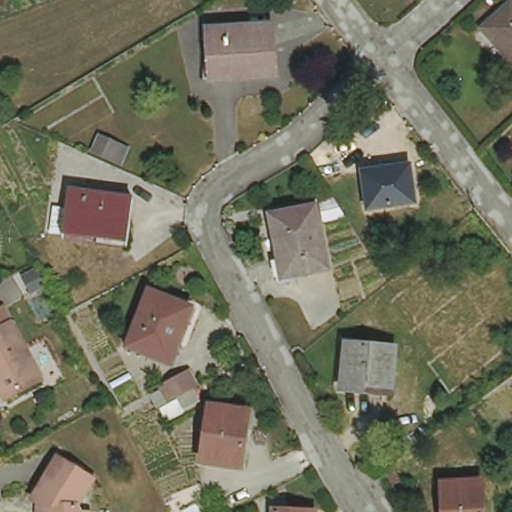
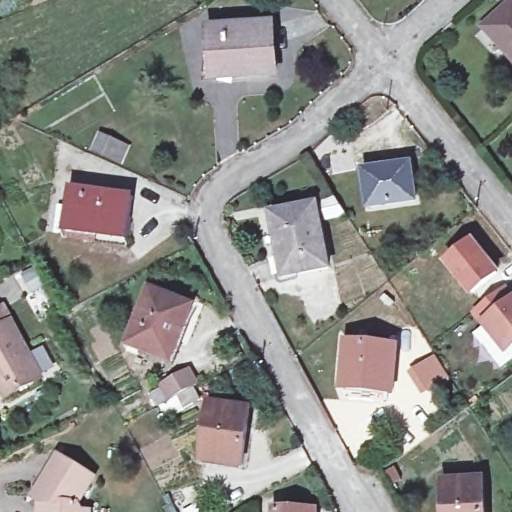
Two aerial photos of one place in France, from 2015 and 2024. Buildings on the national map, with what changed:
unchanged [(505,0),(512,0),(512,48),(485,21),(505,0)]
unchanged [(210,29),(272,25),(275,70),(220,73),(213,74),(212,61),(210,29)]
unchanged [(416,194),(369,199),(365,164),(412,159),(416,194)]
unchanged [(124,190),(120,232),(55,226),(60,183),(124,190)]
unchanged [(297,207),(297,209),(315,204),(328,262),(283,272),(270,213),(297,207)]
new [(442,263),(473,239),(501,274),(472,298),(442,263)]
new [(472,314),(505,286),(512,293),(512,352),(507,357),(480,324),(472,314)]
unchanged [(191,304),(176,341),(173,340),(167,355),(130,341),(150,289),(191,304)]
unchanged [(36,371),(2,390),(0,386),(0,318),(6,314),(36,371)]
unchanged [(399,344),(397,387),(347,383),(350,340),(399,344)]
unchanged [(197,382),(172,396),(165,384),(190,369),(197,382)]
unchanged [(208,400),(248,408),(238,460),(199,453),(208,400)]
unchanged [(43,494),(35,489),(60,448),(95,469),(79,495),(83,498),(83,503),(92,503),(91,512),(42,512),(43,494)]
unchanged [(488,512),(448,512),(445,484),(486,479),(488,512)]

